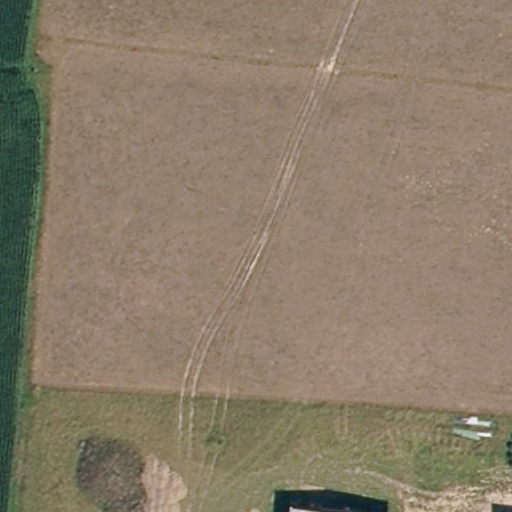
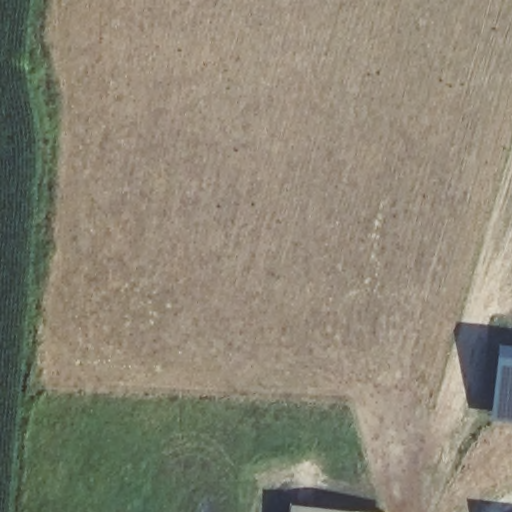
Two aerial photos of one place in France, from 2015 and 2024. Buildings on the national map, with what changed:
new [(512,345),(512,420),(490,418),(498,343),(512,345)]
unchanged [(373,512),(289,512),(289,505),(373,512)]

